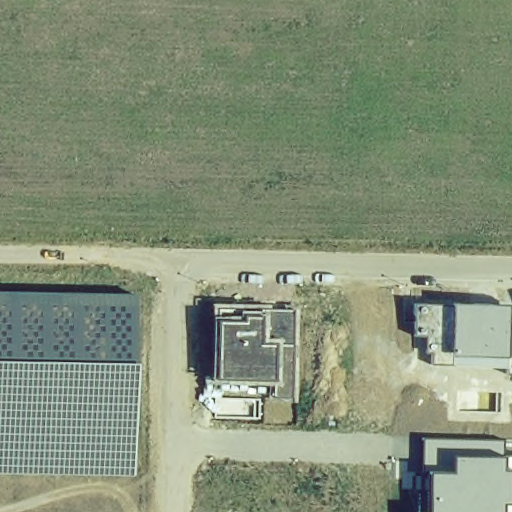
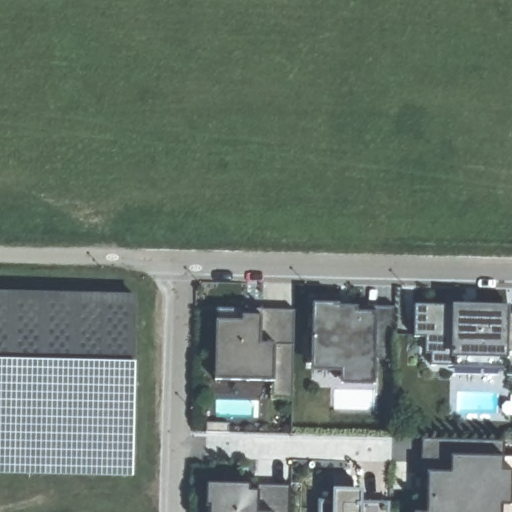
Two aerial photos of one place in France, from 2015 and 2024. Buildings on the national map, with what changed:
unchanged [(18,453),(18,471),(0,470),(0,292),(140,295),(137,456),(18,453)]
new [(342,384),(342,372),(313,371),(313,364),(314,311),(314,303),(338,303),(340,303),(340,306),(359,307),(359,312),(393,312),(393,307),(395,307),(394,359),(377,359),(377,371),(377,385),(342,384)]
unchanged [(455,303),(510,305),(509,315),(512,315),(512,374),(509,374),(508,367),(434,365),(433,353),(428,352),(429,335),(417,335),(419,305),(455,306),(455,303)]
unchanged [(276,398),(276,381),(212,380),(213,316),(218,317),(218,309),(297,311),(295,398),(276,398)]
unchanged [(504,457),(512,457),(512,504),(504,503),(504,512),(429,512),(431,473),(424,470),(425,440),(504,442),(504,457)]
unchanged [(18,471),(18,453),(137,456),(137,472),(18,471)]
new [(334,500),(334,488),(335,477),(352,477),(351,490),(363,490),(364,502),(389,502),(389,512),(318,512),(319,500),(334,500)]
new [(259,485),(292,486),(291,512),(213,512),(213,490),(258,491),(259,485)]

